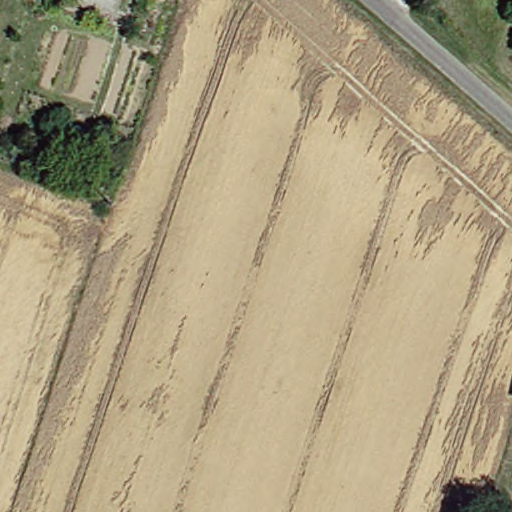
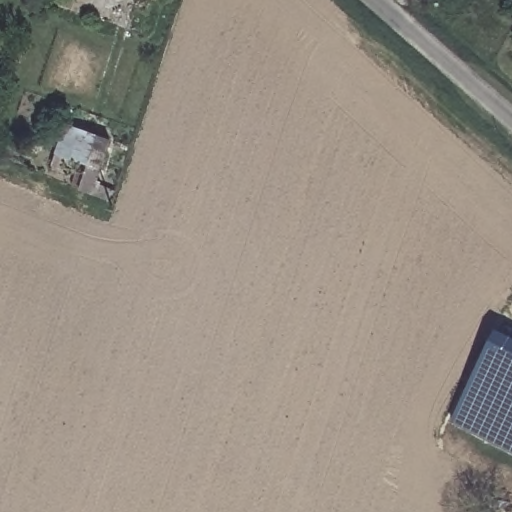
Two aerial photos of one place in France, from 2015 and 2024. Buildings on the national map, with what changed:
demolished [(78,118),(91,122),(84,146),(70,142),(78,118)]
new [(453,423),(498,334),(512,341),(512,453),(453,423)]

